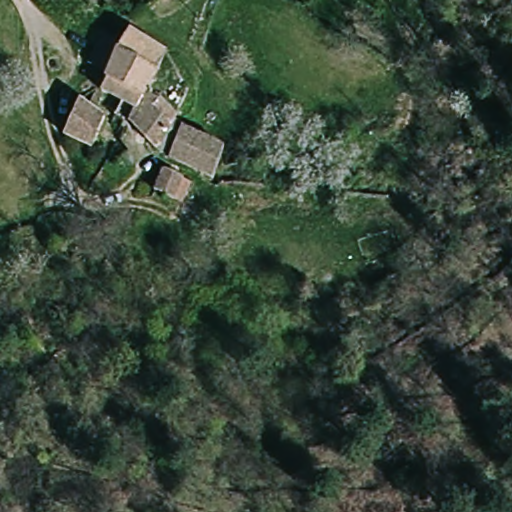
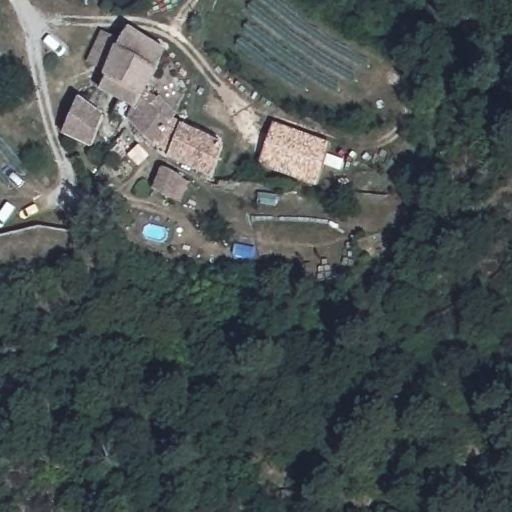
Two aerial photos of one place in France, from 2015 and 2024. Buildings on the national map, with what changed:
unchanged [(152,97),(163,104),(158,114),(174,126),(207,140),(228,150),(218,179),(165,155),(135,125),(117,117),(129,92),(112,82),(115,76),(97,65),(109,34),(129,45),(133,37),(169,61),(152,97)]
unchanged [(108,117),(94,151),(66,139),(80,105),(108,117)]
new [(333,149),(318,186),(261,166),(264,157),(256,154),(263,135),(270,138),(274,127),(333,149)]
unchanged [(181,204),(158,192),(169,172),(192,184),(181,204)]

